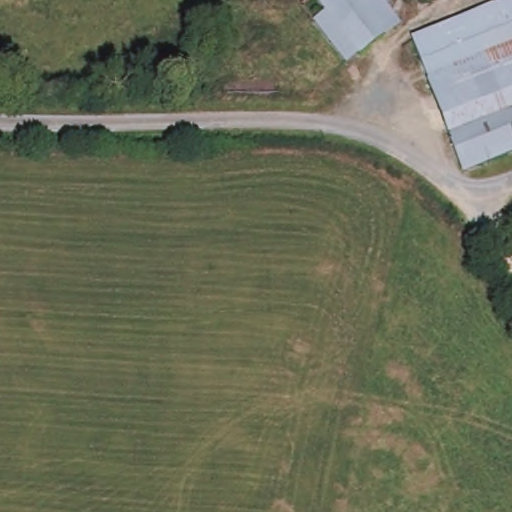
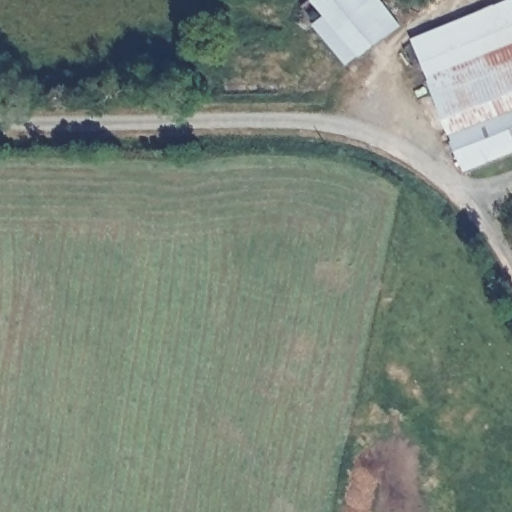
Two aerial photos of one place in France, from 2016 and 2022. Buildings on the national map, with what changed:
unchanged [(356,57),(322,16),(312,23),(296,6),(304,0),(394,0),(408,18),(397,26),(356,57)]
unchanged [(410,40),(512,0),(512,154),(462,175),(410,40)]

